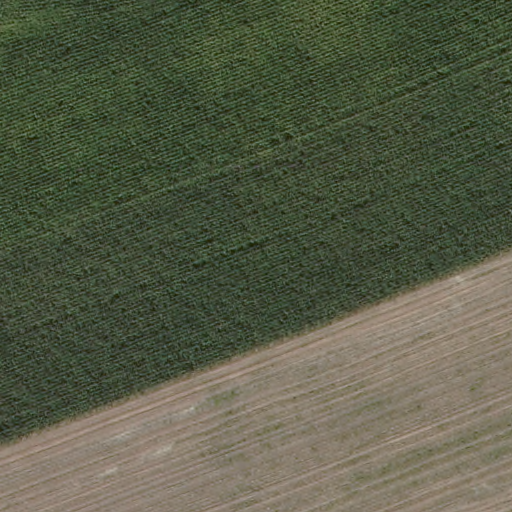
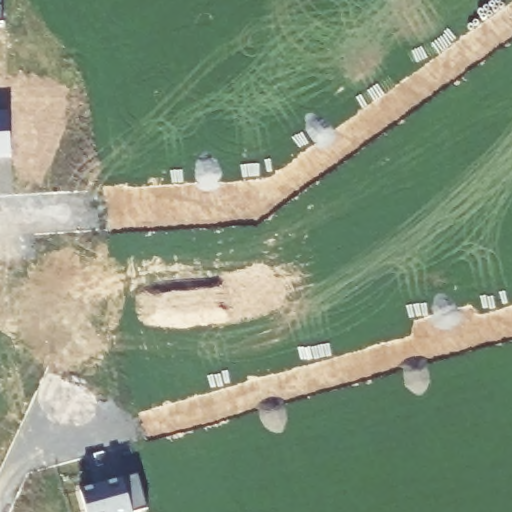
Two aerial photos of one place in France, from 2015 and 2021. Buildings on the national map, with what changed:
new [(101,478),(122,472),(124,478),(139,473),(150,508),(138,512),(88,512),(81,491),(104,484),(101,478)]

